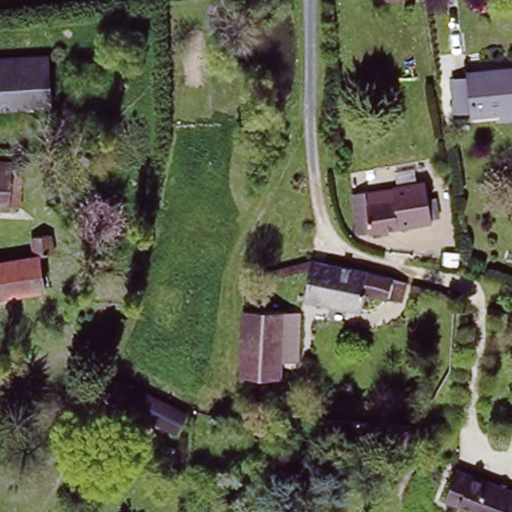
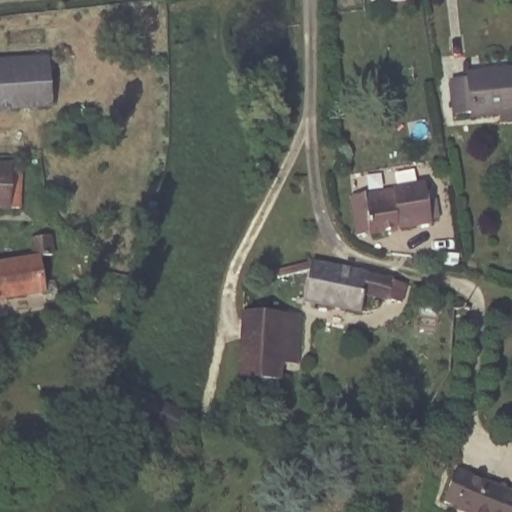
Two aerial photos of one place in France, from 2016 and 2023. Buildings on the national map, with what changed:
unchanged [(54,107),(0,110),(0,62),(50,57),(54,107)]
unchanged [(467,71),(467,67),(512,63),(512,115),(474,117),(472,110),(455,112),(452,72),(467,71)]
unchanged [(12,165),(22,166),(21,204),(0,204),(0,158),(12,159),(12,165)]
unchanged [(432,184),(439,220),(366,234),(360,197),(432,184)]
unchanged [(30,242),(52,239),(55,257),(40,260),(43,292),(0,300),(0,266),(31,261),(30,242)]
unchanged [(311,260),(403,284),(397,303),(364,293),(359,312),(302,301),(309,270),(279,278),(276,270),(311,260)]
unchanged [(240,302),(259,303),(258,315),(297,316),(297,363),(277,363),(277,398),(237,398),(240,302)]
unchanged [(185,411),(177,433),(107,399),(119,375),(185,411)]
unchanged [(314,417),(315,445),(288,445),(288,417),(314,417)]
unchanged [(456,473),(512,496),(512,512),(462,512),(455,510),(457,505),(444,500),(456,473)]

